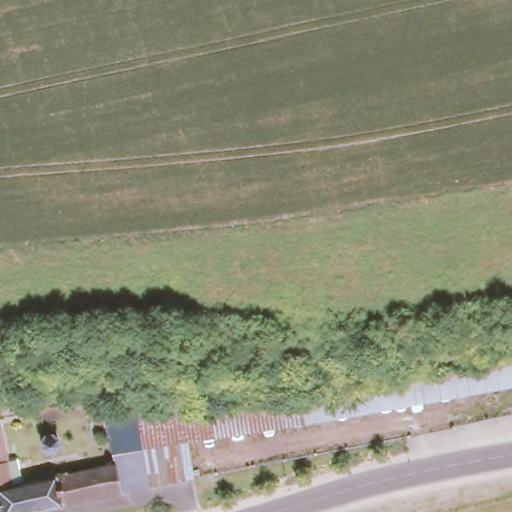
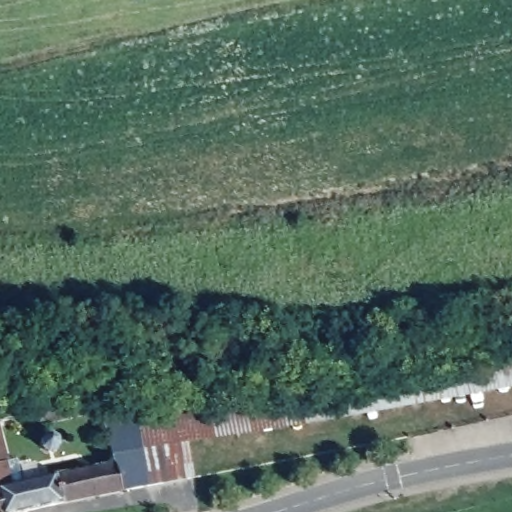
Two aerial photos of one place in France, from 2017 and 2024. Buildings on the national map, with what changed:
unchanged [(512,356),(512,383),(189,438),(117,450),(111,424),(512,356)]
unchanged [(22,390),(28,413),(6,417),(2,393),(22,390)]
unchanged [(43,409),(59,406),(99,398),(103,410),(62,418),(46,421),(43,409)]
unchanged [(19,458),(24,482),(116,463),(123,491),(23,512),(0,512),(0,418),(9,460),(19,458)]
unchanged [(54,434),(59,438),(60,445),(55,452),(48,453),(43,448),(41,439),(47,434),(54,434)]
unchanged [(196,478),(123,491),(116,463),(113,451),(117,450),(189,438),(196,478)]

